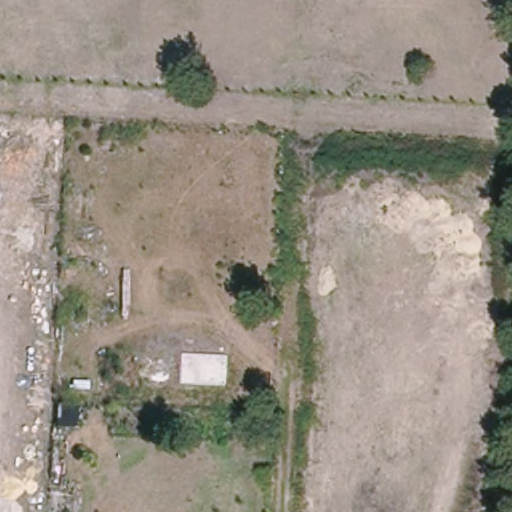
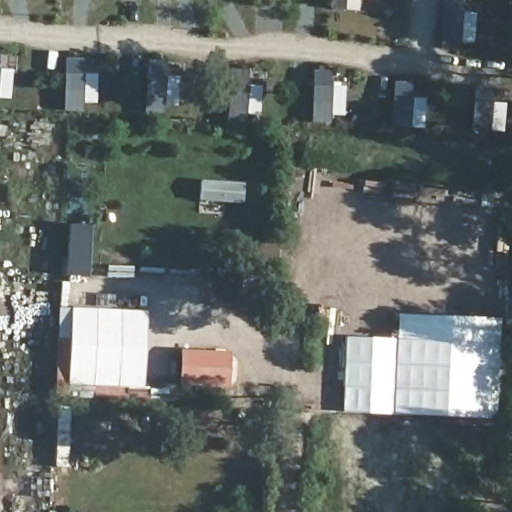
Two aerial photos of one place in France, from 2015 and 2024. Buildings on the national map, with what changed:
new [(462,11),(475,13),(473,44),(460,42),(459,50),(440,49),(444,0),(463,0),(462,11)]
new [(83,59),(83,75),(97,75),(96,103),(83,102),(82,111),(64,110),(65,59),(83,59)]
new [(166,61),(165,76),(179,77),(177,106),(164,105),(163,114),(144,112),(148,60),(166,61)]
new [(10,99),(0,98),(0,69),(12,70),(10,99)]
new [(332,71),(331,85),(345,85),(344,116),(330,115),(330,123),(311,122),(313,70),(332,71)]
new [(68,224),(92,225),(89,276),(66,275),(68,224)]
new [(146,388),(68,385),(70,307),(146,310),(146,388)]
new [(397,340),(398,315),(500,319),(495,418),(392,415),(343,411),(346,338),(397,340)]
new [(178,385),(180,350),(231,351),(229,387),(178,385)]

